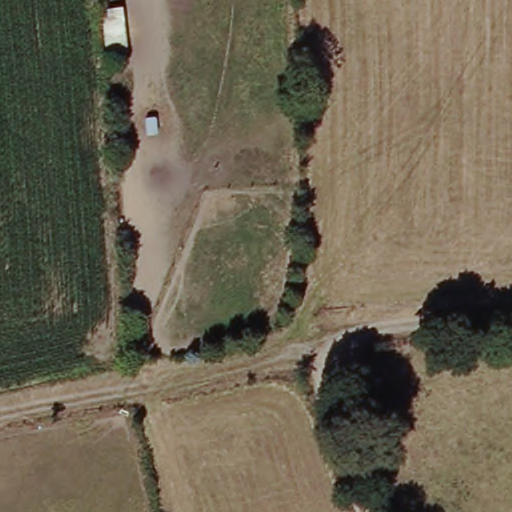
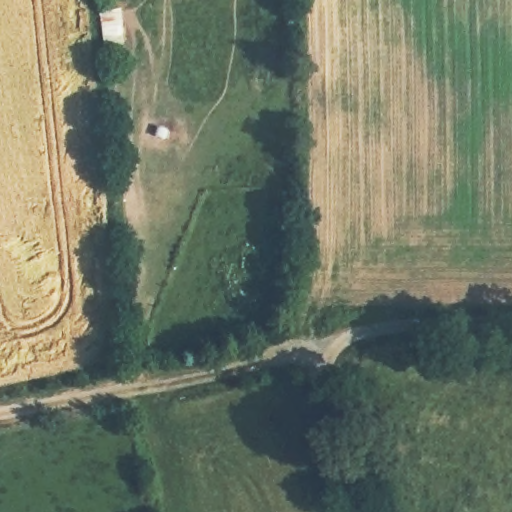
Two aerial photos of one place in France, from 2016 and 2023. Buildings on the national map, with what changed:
unchanged [(109,60),(101,9),(122,4),(131,58),(109,60)]

